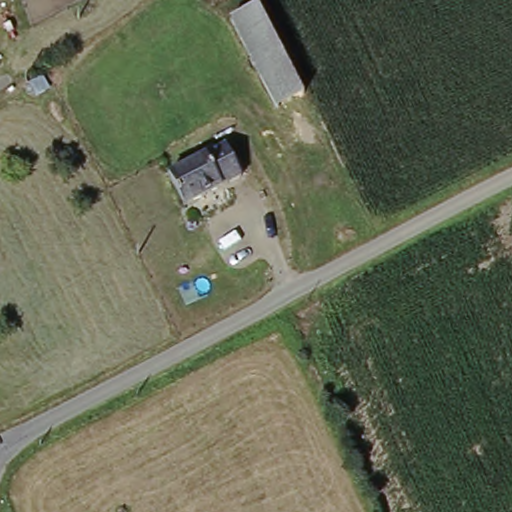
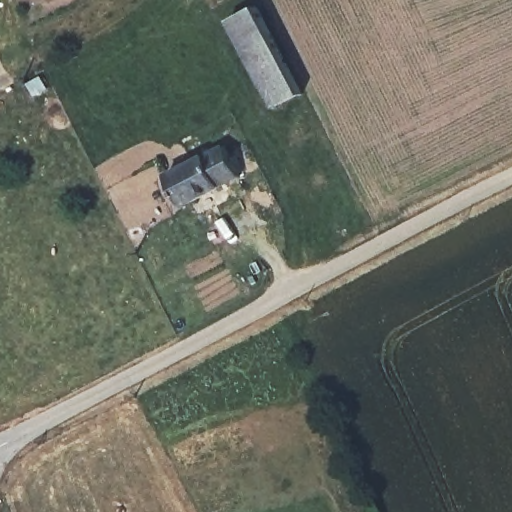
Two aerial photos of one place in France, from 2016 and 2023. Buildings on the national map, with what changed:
unchanged [(308,100),(279,113),(234,27),(261,12),(308,100)]
unchanged [(224,150),(241,180),(223,190),(185,210),(170,180),(224,150)]

